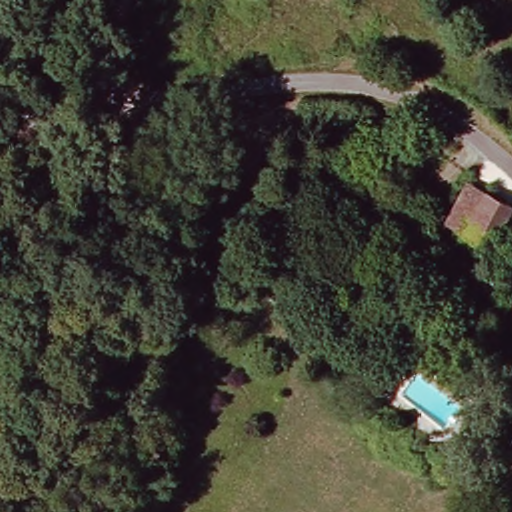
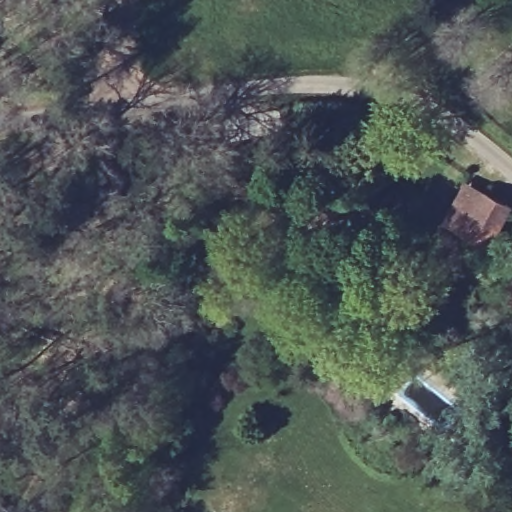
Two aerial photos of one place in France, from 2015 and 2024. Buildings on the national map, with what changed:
unchanged [(467,187),(487,199),(463,238),(443,224),(467,187)]
unchanged [(512,214),(488,252),(463,238),(487,199),(512,214)]
unchanged [(509,314),(495,304),(512,277),(512,315),(509,314)]
unchanged [(412,475),(417,466),(437,474),(432,483),(412,475)]

